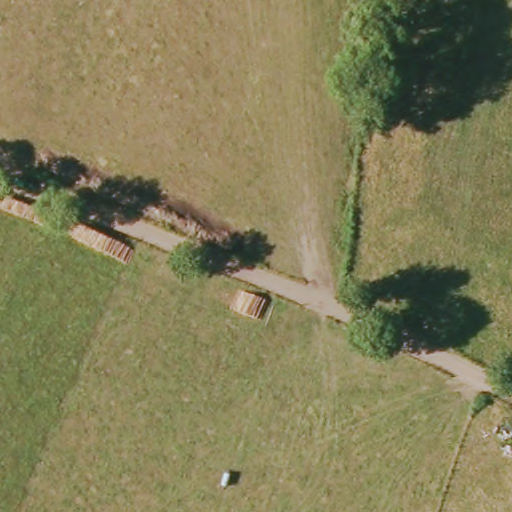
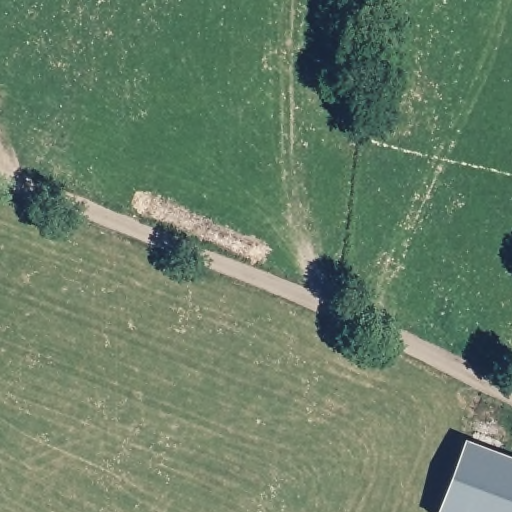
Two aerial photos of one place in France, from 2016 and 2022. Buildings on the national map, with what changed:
new [(466,443),(512,461),(512,512),(438,512),(466,443)]

